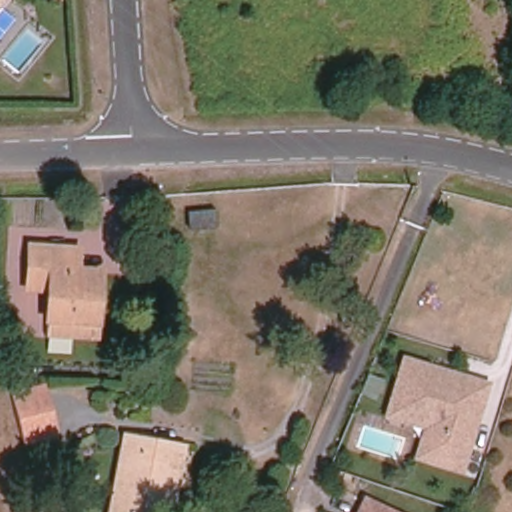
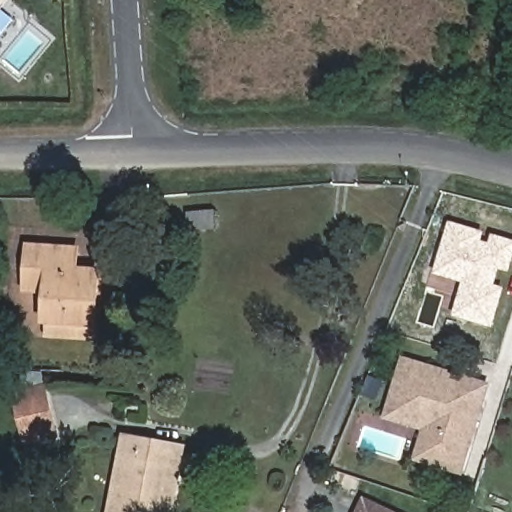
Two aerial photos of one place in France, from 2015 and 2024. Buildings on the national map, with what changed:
unchanged [(216,227),(193,228),(194,210),(214,210),(216,227)]
new [(455,316),(464,282),(435,273),(451,222),(486,232),(483,241),(490,243),(493,234),(512,240),(512,268),(511,272),(501,270),(497,285),(506,288),(494,328),(455,316)]
unchanged [(54,335),(55,314),(56,288),(35,287),(37,240),(82,242),(81,264),(105,266),(102,325),(102,337),(54,335)]
unchanged [(490,384),(463,475),(415,459),(422,430),(386,419),(406,358),(490,384)]
unchanged [(45,386),(57,434),(27,441),(14,392),(45,386)]
unchanged [(131,435),(145,436),(187,444),(184,463),(176,512),(116,512),(129,451),(131,435)]
unchanged [(379,512),(360,512),(363,505),(379,512)]

